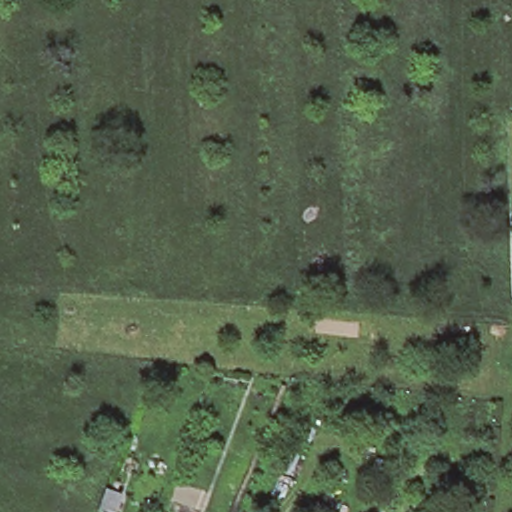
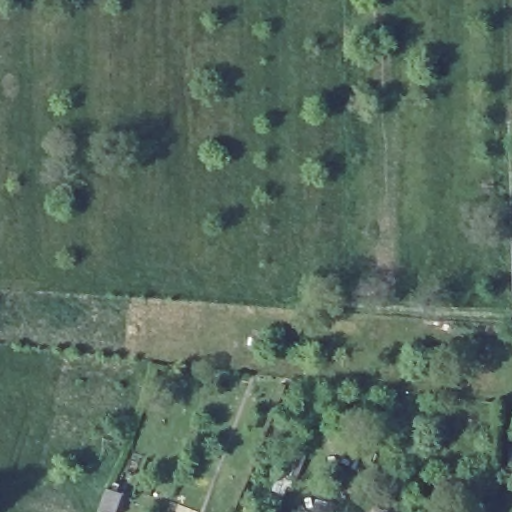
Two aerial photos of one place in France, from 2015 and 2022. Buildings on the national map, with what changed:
unchanged [(121,493),(115,512),(97,512),(106,488),(121,493)]

